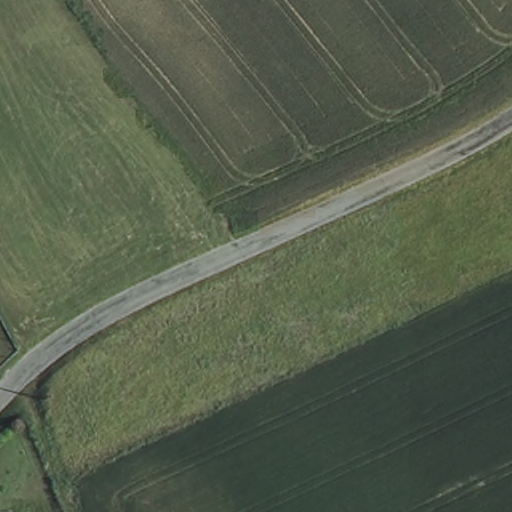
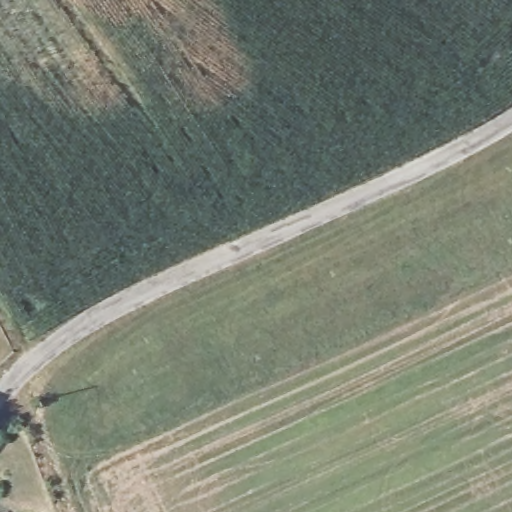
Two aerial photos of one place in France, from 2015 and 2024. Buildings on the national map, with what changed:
[]

